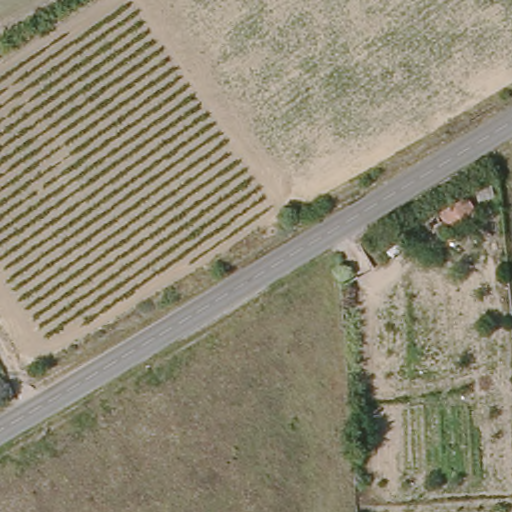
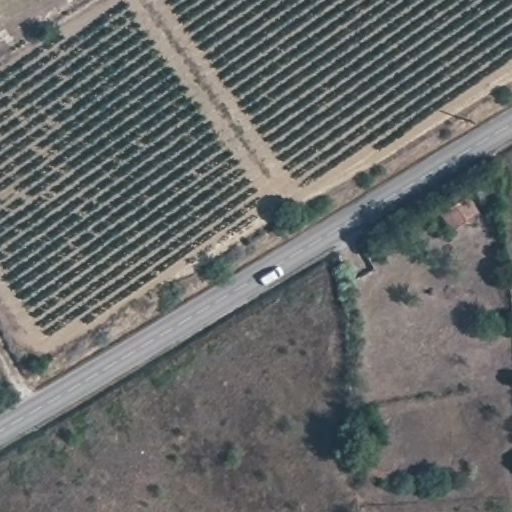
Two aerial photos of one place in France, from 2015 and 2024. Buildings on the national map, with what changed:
unchanged [(476,192),(493,189),(496,201),(479,205),(476,192)]
unchanged [(474,214),(448,227),(441,209),(469,199),(474,214)]

